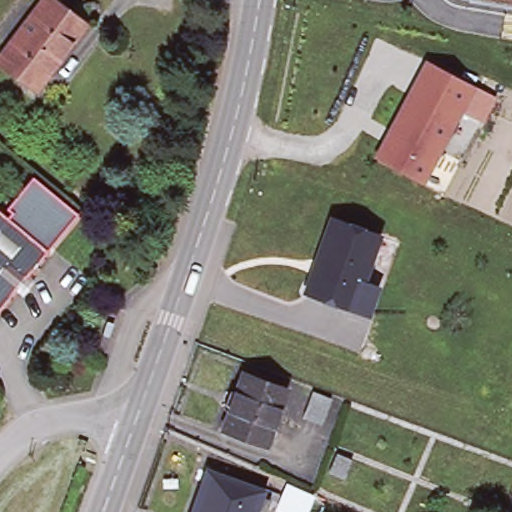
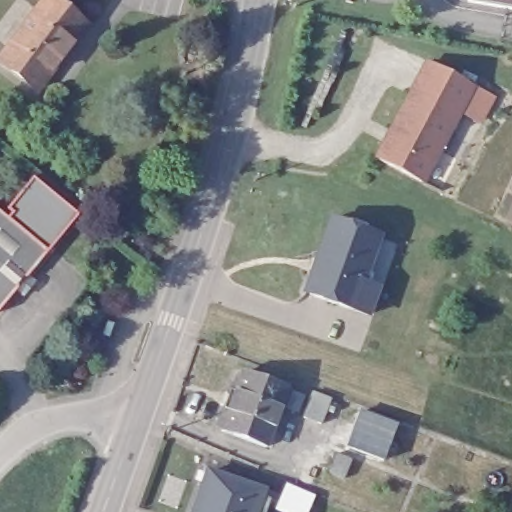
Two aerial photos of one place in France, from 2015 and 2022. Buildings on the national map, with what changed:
unchanged [(31,91),(0,68),(0,51),(39,0),(44,0),(79,28),(52,63),(45,72),(31,91)]
unchanged [(512,9),(469,2),(469,0),(512,0),(512,9)]
unchanged [(420,183),(375,160),(427,63),(472,87),(420,183)]
unchanged [(32,184),(77,220),(45,257),(2,223),(32,184)]
unchanged [(348,312),(337,308),(305,295),(302,291),(332,221),(378,239),(360,285),(373,291),(363,316),(362,318),(348,312)]
unchanged [(2,223),(45,257),(0,317),(0,222),(2,223)]
unchanged [(244,378),(287,394),(265,449),(223,433),(244,378)]
unchanged [(312,394),(330,401),(320,425),(302,418),(312,394)]
new [(400,424),(387,460),(349,446),(361,408),(400,424)]
unchanged [(336,454),(352,459),(343,478),(328,472),(336,454)]
unchanged [(262,491),(255,512),(193,512),(207,471),(262,491)]

